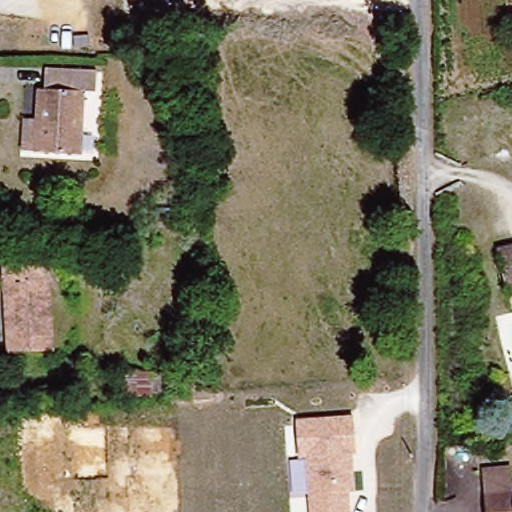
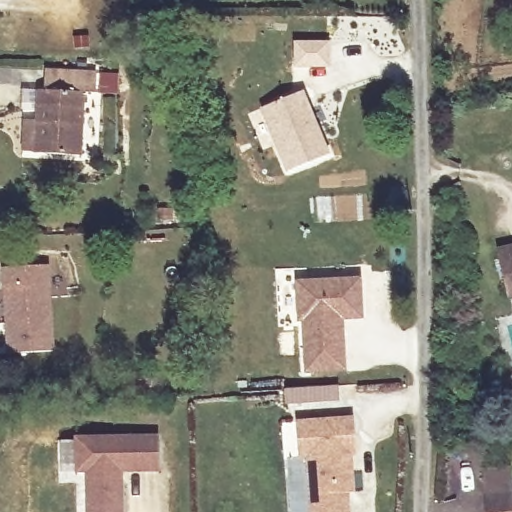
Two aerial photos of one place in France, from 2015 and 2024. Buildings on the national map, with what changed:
new [(329,44),(329,65),(298,66),(297,44),(329,44)]
unchanged [(24,120),(37,120),(39,89),(45,90),(46,70),(95,71),(94,91),(83,91),(80,155),(35,153),(35,150),(23,149),(24,120)]
new [(274,104),(304,92),(331,155),(291,172),(279,145),(265,151),(250,115),(274,104)]
unchanged [(512,248),(512,285),(504,250),(512,248)]
unchanged [(53,264),(58,350),(13,353),(8,267),(53,264)]
new [(324,372),(309,373),(306,322),(302,322),(299,269),(309,269),(310,281),(364,278),(366,318),(347,319),(349,355),(349,371),(324,372)]
unchanged [(120,370),(153,369),(153,397),(120,398),(120,370)]
new [(335,386),(337,401),(312,403),(287,405),(286,390),(311,388),(335,386)]
unchanged [(356,414),(359,454),(354,454),(356,492),(351,493),(352,512),(310,512),(306,460),(299,460),(296,418),(356,414)]
new [(85,472),(75,472),(75,436),(158,435),(159,472),(124,473),(125,512),(86,512),(85,472)]
unchanged [(483,473),(509,471),(511,491),(512,491),(512,512),(486,512),(483,473)]

